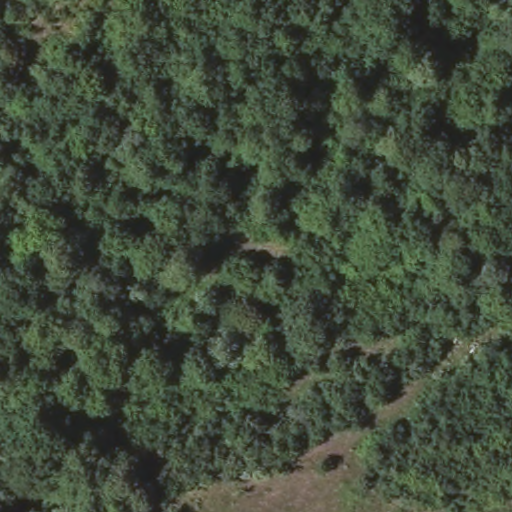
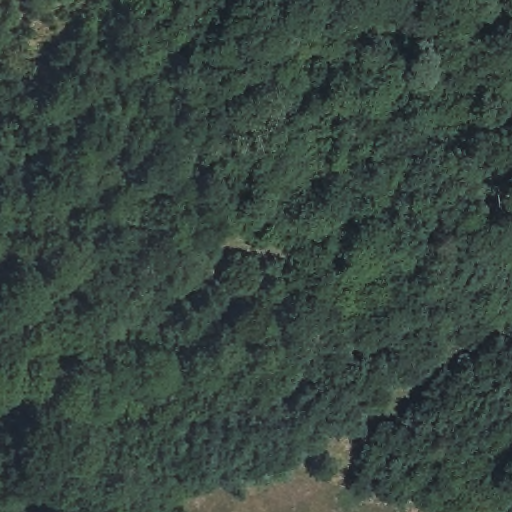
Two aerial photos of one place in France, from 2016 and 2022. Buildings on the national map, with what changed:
[]

